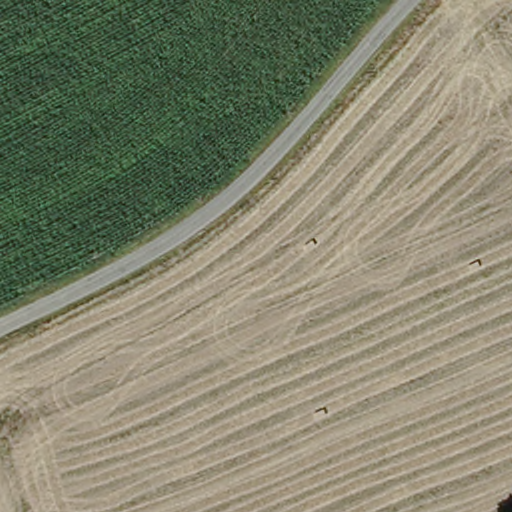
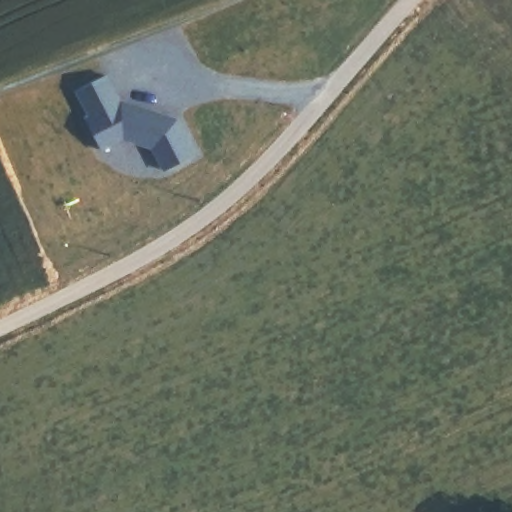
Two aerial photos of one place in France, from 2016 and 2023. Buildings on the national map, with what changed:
new [(105,76),(119,102),(120,102),(165,116),(169,124),(176,120),(194,155),(164,170),(152,148),(123,139),(101,150),(85,120),(90,117),(76,90),(105,76)]

